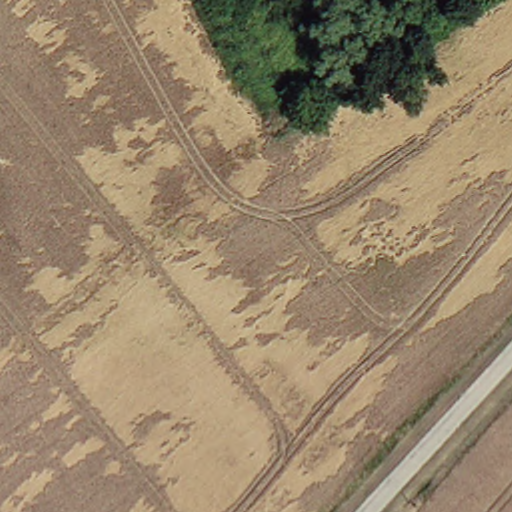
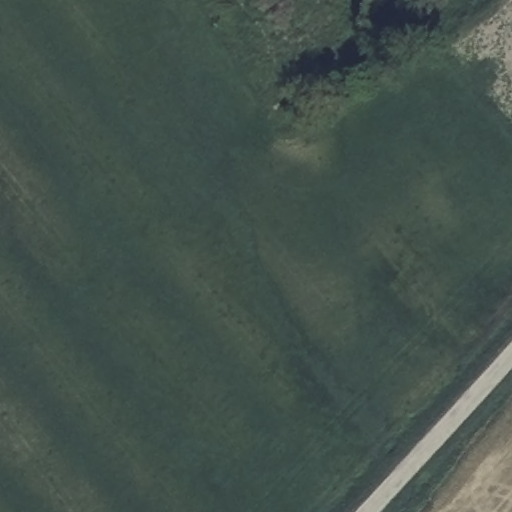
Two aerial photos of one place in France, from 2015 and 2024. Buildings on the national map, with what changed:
[]

